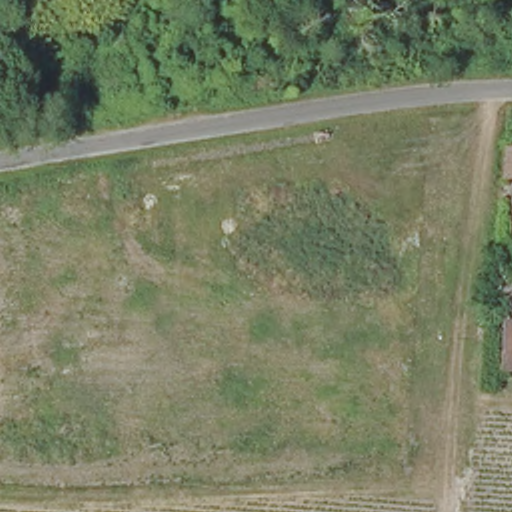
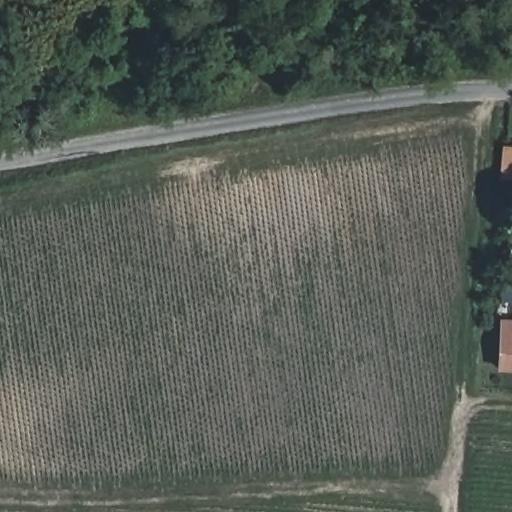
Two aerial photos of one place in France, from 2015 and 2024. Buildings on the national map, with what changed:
unchanged [(511,160),(512,159),(512,178),(509,178),(511,160)]
unchanged [(512,325),(512,369),(490,369),(495,325),(512,325)]

